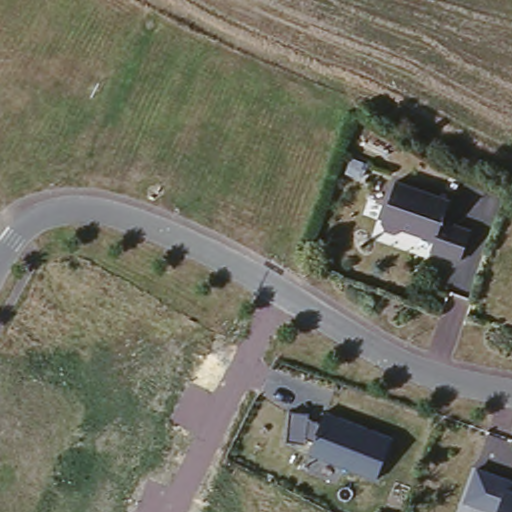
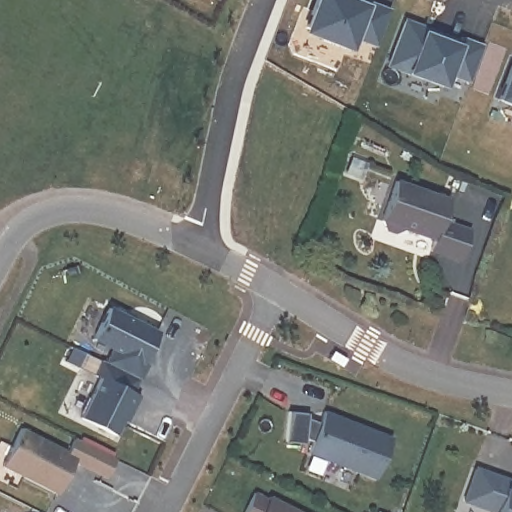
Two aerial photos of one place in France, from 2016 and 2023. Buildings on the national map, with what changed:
new [(345,4),(387,15),(375,49),(351,41),(348,52),(309,39),(305,31),(316,0),(346,0),(345,4)]
new [(430,35),(428,39),(438,42),(440,38),(457,44),(459,40),(481,50),(467,86),(446,77),(442,88),(388,69),(404,25),(430,35)]
new [(512,67),(512,108),(497,103),(512,67)]
unchanged [(456,195),(445,235),(385,218),(401,177),(456,195)]
unchanged [(445,235),(450,219),(468,225),(457,262),(423,252),(430,231),(445,235)]
new [(160,333),(145,362),(150,365),(137,387),(130,382),(127,388),(141,395),(127,421),(125,419),(115,436),(81,418),(101,378),(95,376),(101,362),(105,363),(112,349),(93,340),(109,307),(160,333)]
unchanged [(310,413),(310,420),(320,422),(323,411),(391,438),(376,477),(308,452),(314,440),(306,437),(305,443),(286,441),(289,412),(310,413)]
new [(69,453),(76,439),(115,460),(105,477),(75,462),(57,496),(2,468),(21,429),(69,453)]
unchanged [(512,512),(487,512),(463,503),(477,466),(512,481),(512,512)]
new [(267,502),(269,498),(296,512),(245,512),(252,495),(267,502)]

